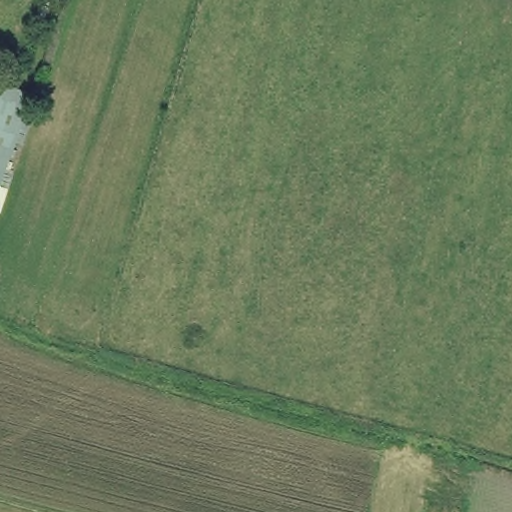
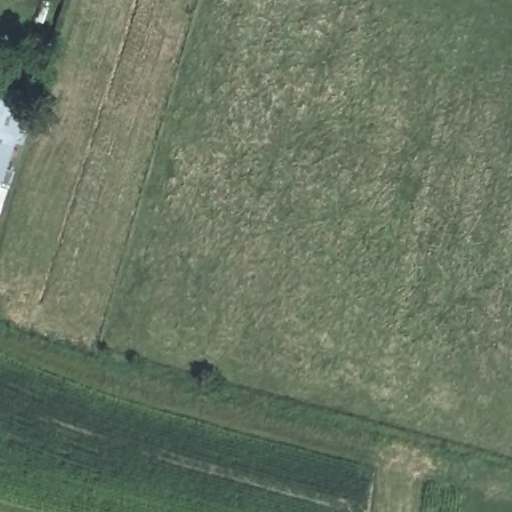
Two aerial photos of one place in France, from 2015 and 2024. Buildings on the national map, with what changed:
unchanged [(2,175),(0,174),(0,83),(33,95),(2,175)]

